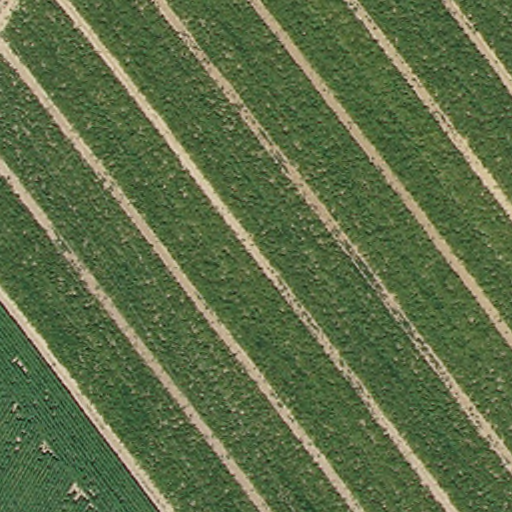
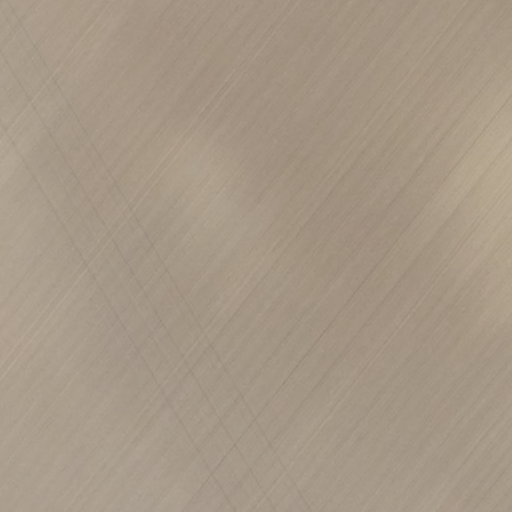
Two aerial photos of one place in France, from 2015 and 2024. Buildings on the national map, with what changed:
[]

